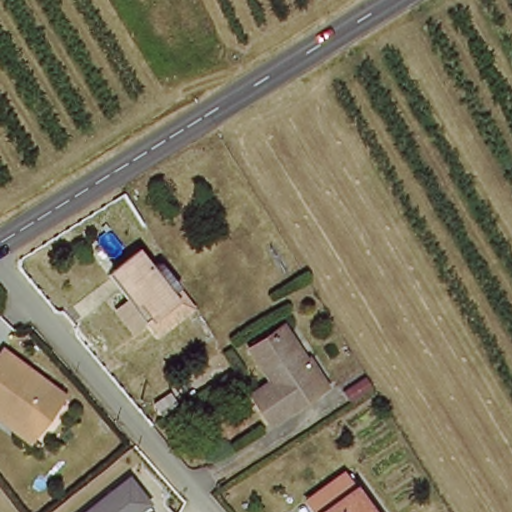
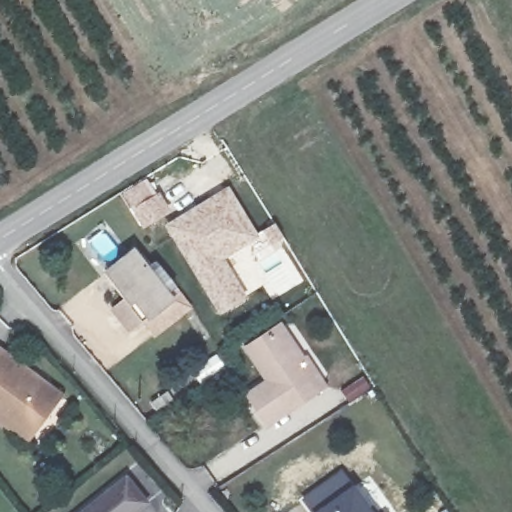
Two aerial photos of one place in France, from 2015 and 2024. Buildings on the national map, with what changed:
new [(145,177),(170,212),(143,229),(122,193),(145,177)]
new [(227,184),(261,237),(228,257),(252,296),(219,317),(162,225),(227,184)]
new [(274,222),(287,242),(272,252),(258,232),(274,222)]
unchanged [(140,252),(175,300),(157,313),(136,286),(128,291),(112,271),(140,252)]
unchanged [(281,321),(302,355),(309,351),(328,381),(272,417),(253,385),(273,371),(252,340),(281,321)]
new [(215,352),(225,365),(200,384),(190,370),(215,352)]
unchanged [(2,432),(0,429),(0,355),(0,353),(1,354),(60,406),(28,441),(22,448),(2,432)]
unchanged [(153,502),(140,512),(80,512),(129,475),(153,502)]
unchanged [(373,512),(320,512),(312,500),(349,476),(373,512)]

